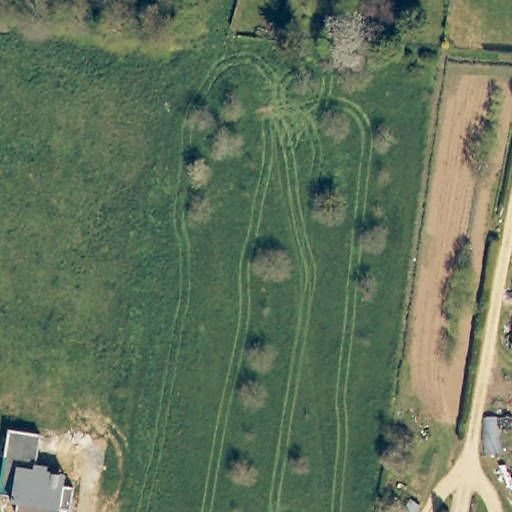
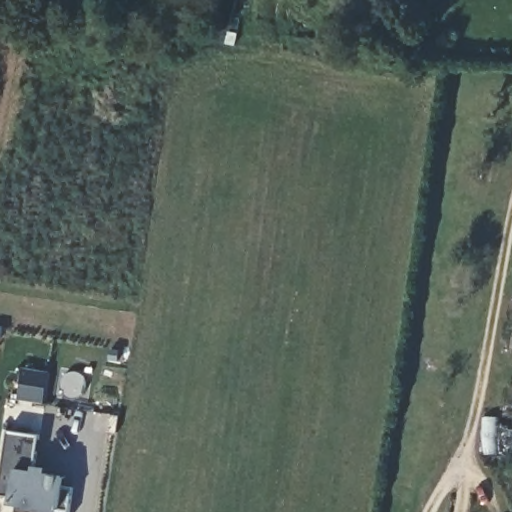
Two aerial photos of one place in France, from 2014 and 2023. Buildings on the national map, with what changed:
unchanged [(19,503),(13,502),(14,495),(0,495),(0,491),(10,430),(42,436),(37,467),(49,468),(49,473),(66,476),(64,486),(73,490),(69,512),(18,512),(19,503)]

